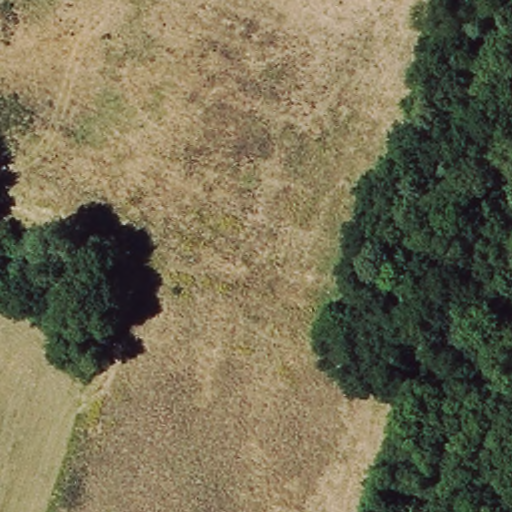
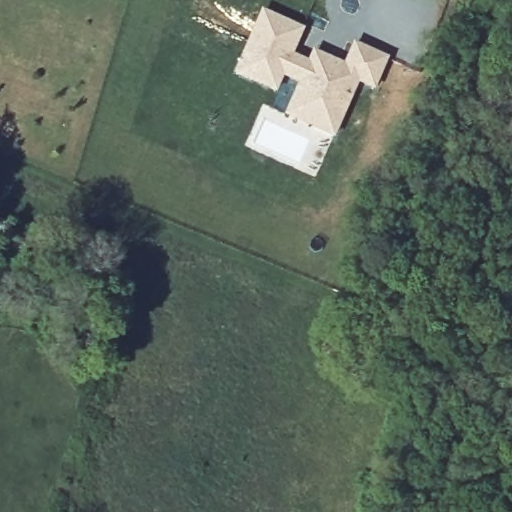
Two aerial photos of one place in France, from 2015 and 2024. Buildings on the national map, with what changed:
new [(302,84),(283,76),(277,92),(237,76),(262,14),(302,30),(291,56),(310,64),(315,52),(346,66),(355,44),(388,57),(375,86),(359,80),(342,122),(336,135),(289,116),(295,102),(302,84)]

